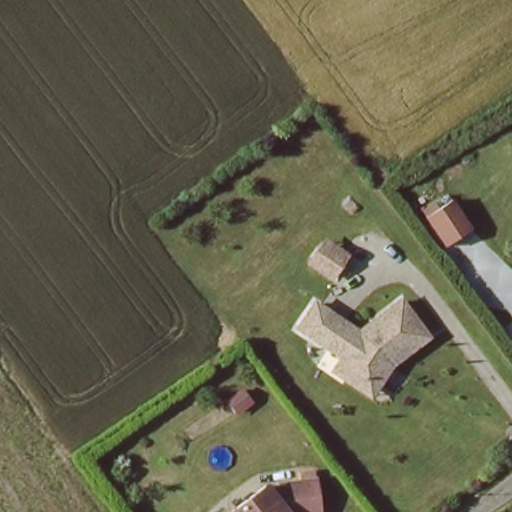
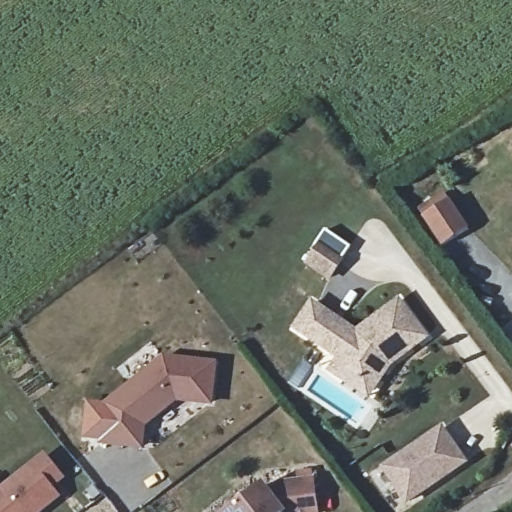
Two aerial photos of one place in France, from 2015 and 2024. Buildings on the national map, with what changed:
unchanged [(442,248),(420,218),(444,199),(471,230),(442,248)]
unchanged [(341,284),(305,262),(321,239),(359,261),(341,284)]
unchanged [(329,368),(339,355),(296,323),(315,299),(356,331),(404,301),(430,344),(392,368),(374,391),(369,399),(329,368)]
new [(103,404),(164,355),(219,361),(214,407),(178,402),(148,427),(145,451),(99,446),(103,404)]
new [(443,424),(470,463),(407,506),(380,468),(443,424)]
new [(65,479),(53,488),(61,498),(44,512),(0,512),(0,489),(45,454),(65,479)]
unchanged [(266,485),(274,494),(284,487),(319,480),(325,512),(290,512),(289,511),(288,512),(233,512),(266,485)]

